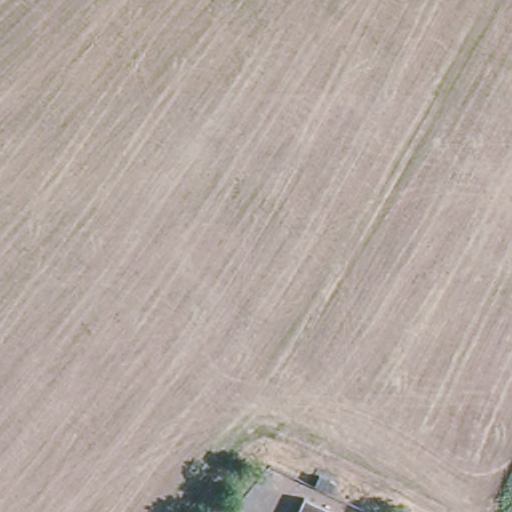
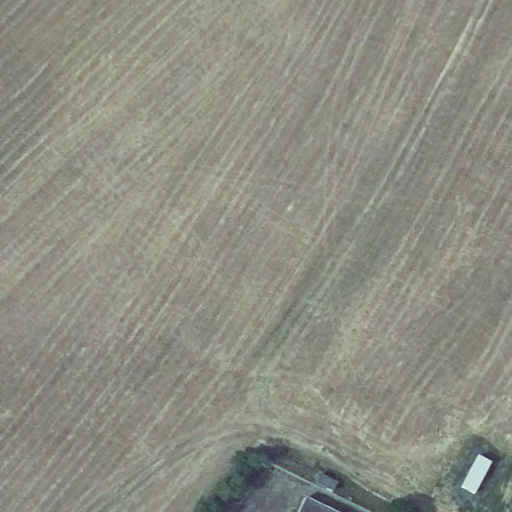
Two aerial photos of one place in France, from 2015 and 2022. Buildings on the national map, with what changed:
unchanged [(336,512),(298,512),(305,495),(336,512)]

